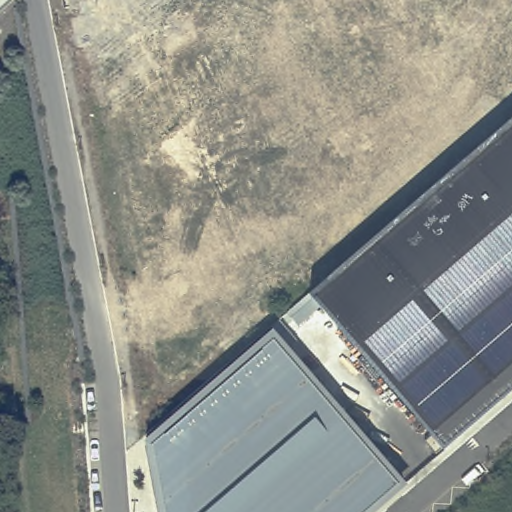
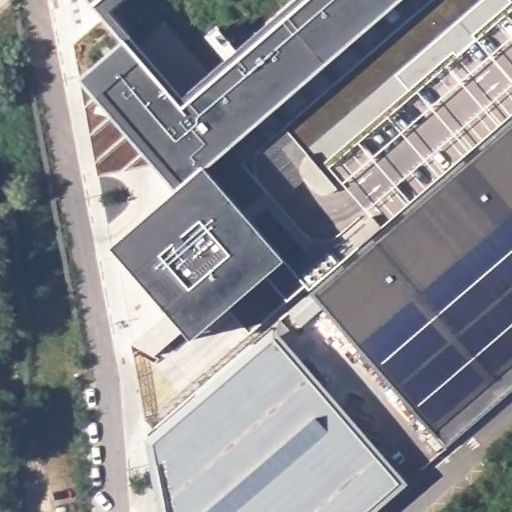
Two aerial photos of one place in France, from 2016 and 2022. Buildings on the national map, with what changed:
new [(165,313),(110,248),(175,192),(153,168),(97,175),(80,81),(74,44),(103,20),(86,0),(397,0),(204,167),(281,262),(226,309),(190,341),(181,330),(152,356),(129,342),(165,313)]
new [(226,309),(281,262),(204,167),(397,0),(512,0),(512,118),(312,294),(305,286),(249,334),(226,309)]
unchanged [(312,294),(512,118),(512,388),(446,445),(312,294)]
unchanged [(311,375),(164,503),(157,497),(161,493),(156,487),(160,484),(154,477),(157,474),(152,467),(156,464),(150,457),(154,454),(149,448),(152,444),(146,438),(147,437),(145,434),(270,327),(311,375)]
unchanged [(164,503),(311,375),(402,481),(398,484),(401,487),(372,512),(165,512),(160,506),(164,503)]
unchanged [(445,450),(437,456),(425,441),(432,435),(445,450)]

